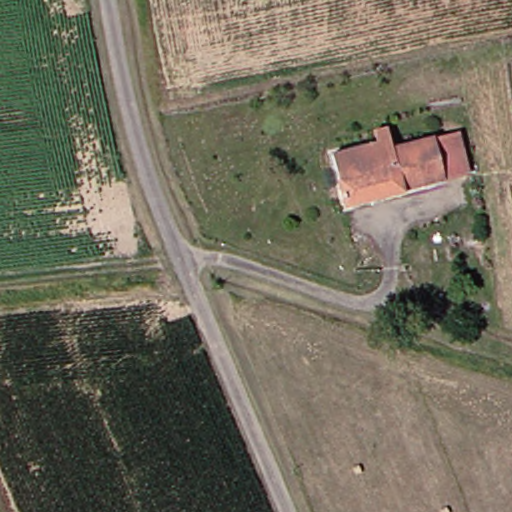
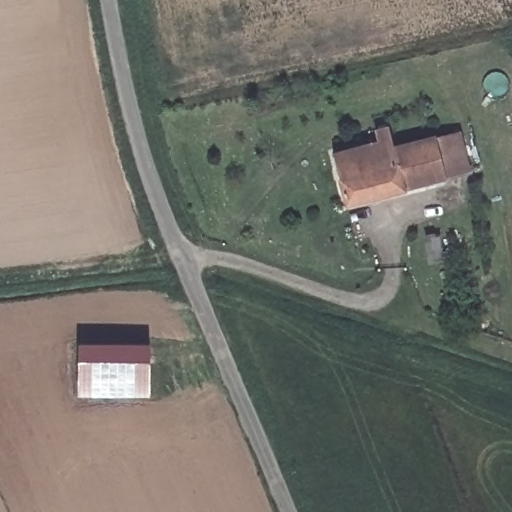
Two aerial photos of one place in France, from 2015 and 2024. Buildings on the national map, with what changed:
unchanged [(448,179),(412,186),(413,193),(352,207),(340,150),(381,141),(380,127),(396,124),(400,141),(439,134),(448,179)]
new [(79,395),(79,342),(150,343),(149,395),(79,395)]

